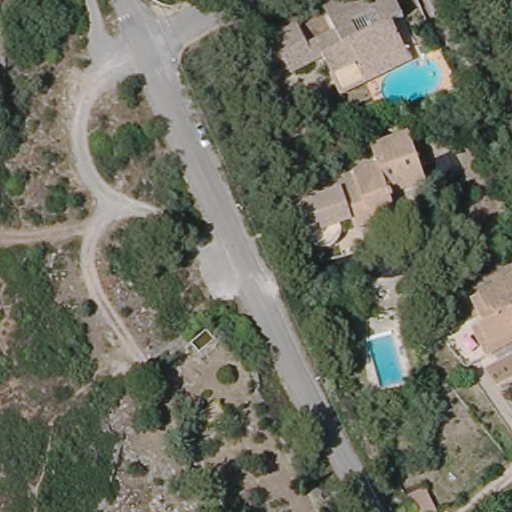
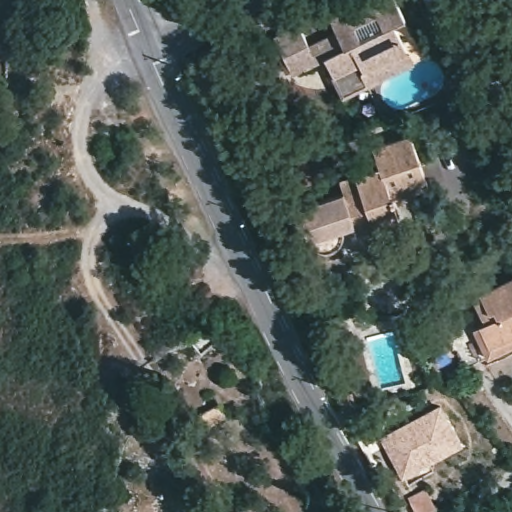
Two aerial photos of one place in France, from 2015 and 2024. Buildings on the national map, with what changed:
unchanged [(360,77),(342,87),(333,69),(328,72),(318,52),(310,56),(303,42),(302,42),(332,27),(320,1),(322,0),(339,0),(393,0),(400,14),(389,20),(402,47),(407,57),(361,80),(360,77)]
unchanged [(310,56),(286,69),(268,34),(293,22),(302,42),(310,56)]
unchanged [(335,256),(333,257),(331,258),(329,260),(326,260),(323,260),(321,260),(318,260),(316,258),(314,257),(312,255),(310,253),(309,251),(308,249),(301,251),(298,242),(287,211),(355,187),(350,176),(374,167),(367,147),(405,134),(423,185),(389,197),(392,206),(390,207),(393,219),(353,232),(340,237),(340,241),(340,244),(340,246),(340,249),(339,251),(337,254),(335,256)]
unchanged [(481,312),(472,296),(480,291),(512,274),(512,340),(468,363),(440,333),(481,312)]
unchanged [(225,415),(205,427),(198,413),(218,402),(225,415)]
new [(435,407),(458,443),(402,480),(380,445),(435,407)]
unchanged [(438,512),(415,512),(407,497),(425,488),(438,512)]

